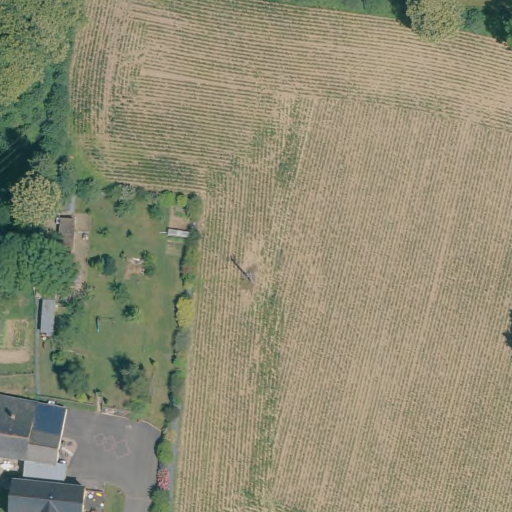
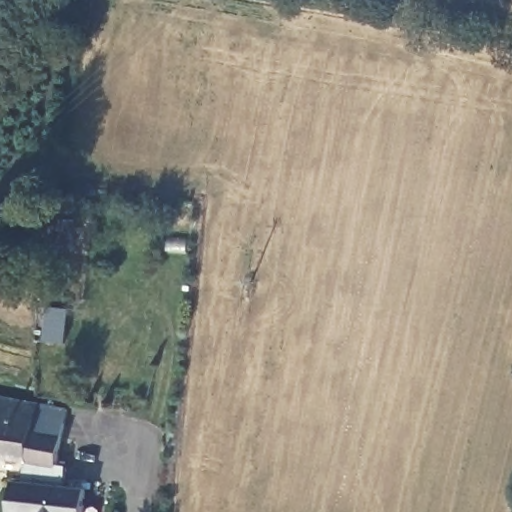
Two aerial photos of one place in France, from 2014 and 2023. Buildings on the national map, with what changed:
unchanged [(63,195),(65,195),(72,196),(72,212),(62,212),(62,207),(63,195)]
unchanged [(74,250),(60,249),(62,219),(75,219),(74,250)]
unchanged [(81,285),(55,283),(56,270),(81,271),(81,285)]
unchanged [(44,399),(34,454),(33,457),(31,457),(0,452),(0,391),(44,399)]
unchanged [(18,478),(29,479),(29,476),(31,457),(33,457),(34,454),(44,399),(72,404),(62,460),(72,461),(70,482),(91,484),(88,512),(15,512),(18,478)]

